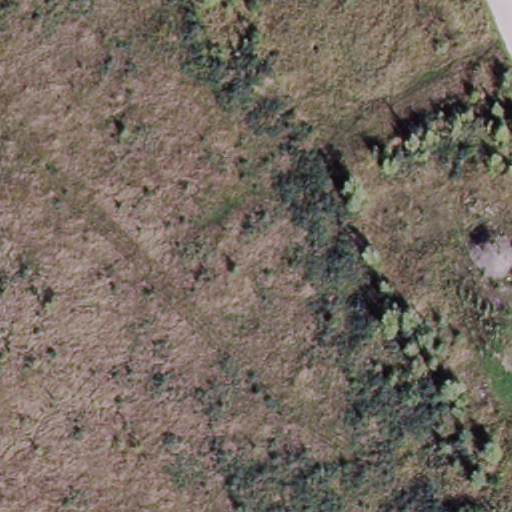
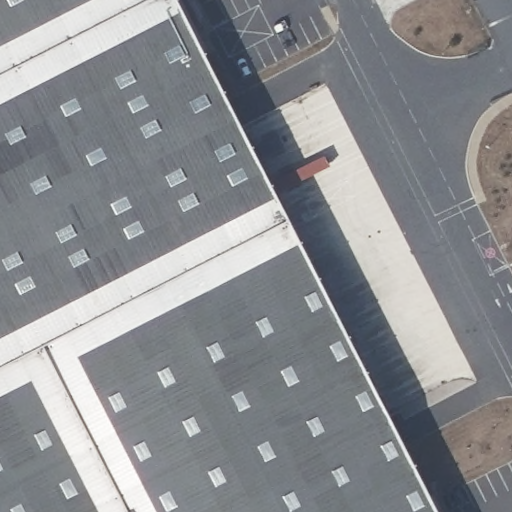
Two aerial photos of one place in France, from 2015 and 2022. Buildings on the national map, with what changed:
new [(172,0),(432,512),(0,512),(0,0),(172,0)]

